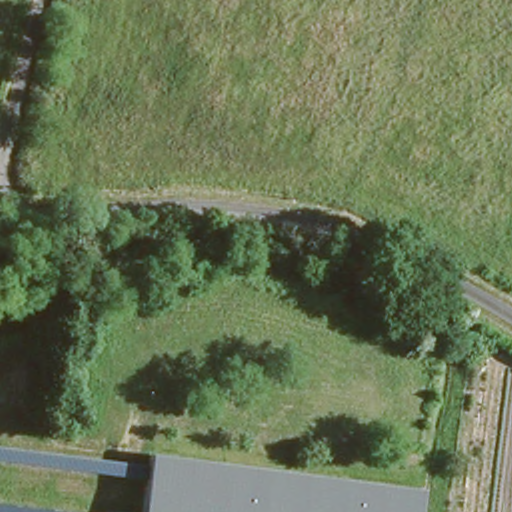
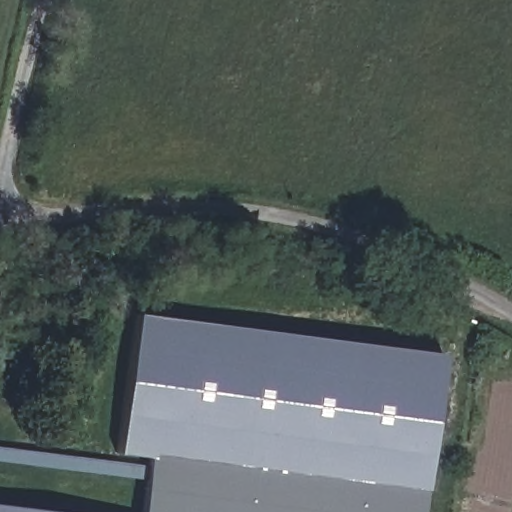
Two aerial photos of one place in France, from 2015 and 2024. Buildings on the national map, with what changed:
new [(117,453),(136,313),(441,353),(421,512),(407,512),(412,474),(145,446),(144,457),(117,453)]
unchanged [(145,446),(412,474),(407,512),(139,512),(145,446)]
unchanged [(122,512),(0,512),(0,501),(122,512)]

